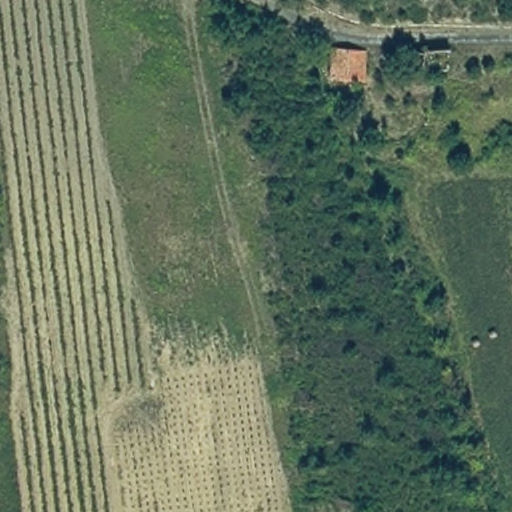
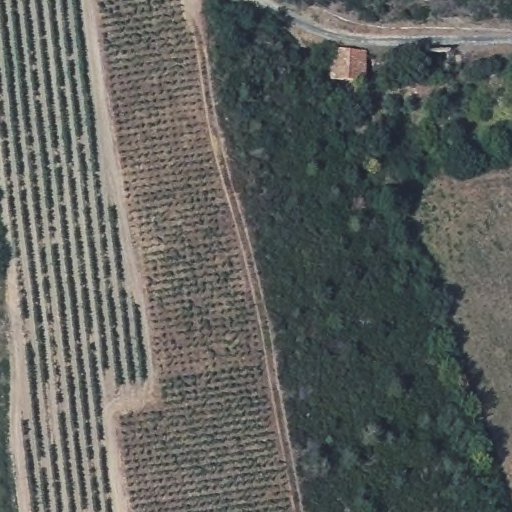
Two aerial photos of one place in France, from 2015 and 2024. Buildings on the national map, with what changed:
unchanged [(328,45),(364,49),(364,81),(328,79),(328,45)]

